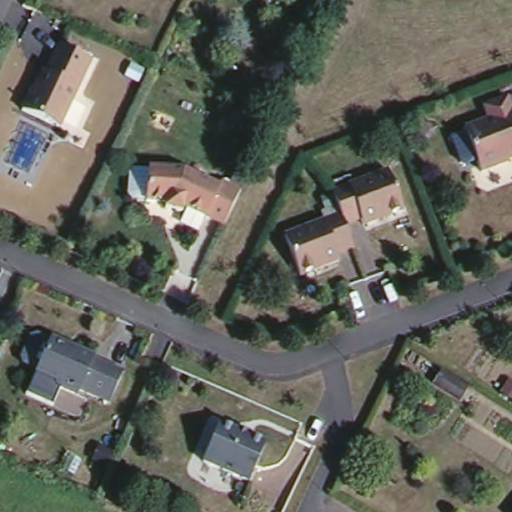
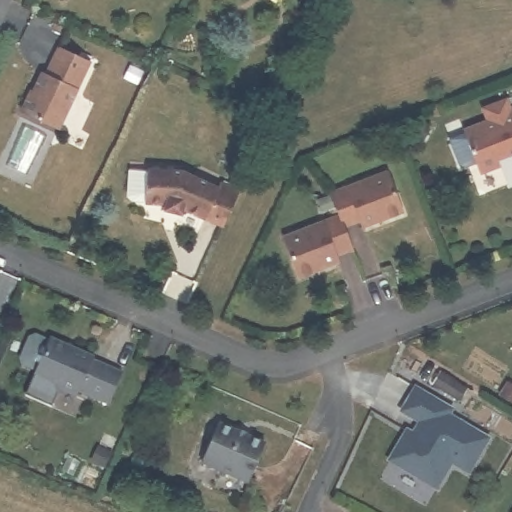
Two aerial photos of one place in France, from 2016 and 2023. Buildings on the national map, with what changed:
unchanged [(61,123),(22,108),(29,92),(34,92),(45,68),(49,70),(61,44),(92,58),(61,123)]
unchanged [(485,116),(485,117),(512,107),(511,104),(512,103),(512,154),(498,159),(500,162),(475,171),(457,127),(485,116)]
unchanged [(190,207),(186,213),(169,211),(168,205),(151,203),(154,167),(196,169),(195,175),(225,183),(226,180),(242,187),(224,224),(190,207)]
unchanged [(405,215),(367,230),(362,224),(347,227),(357,252),(338,260),(341,268),(300,282),(282,235),(342,215),(336,193),(389,171),(405,215)]
unchanged [(42,372),(28,366),(26,358),(35,338),(42,336),(56,342),(57,341),(101,359),(99,363),(130,377),(115,408),(84,392),(81,398),(59,388),(61,383),(41,375),(42,372)]
new [(455,410),(452,415),(491,437),(471,476),(453,466),(440,490),(387,460),(406,427),(413,431),(418,421),(398,410),(412,385),(455,410)]
unchanged [(247,481),(204,460),(221,420),(265,442),(247,481)]

